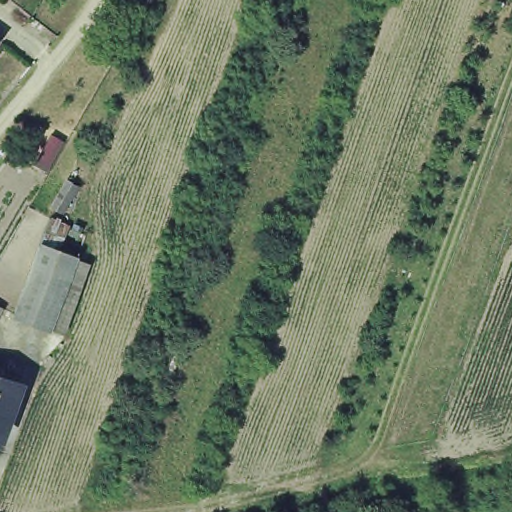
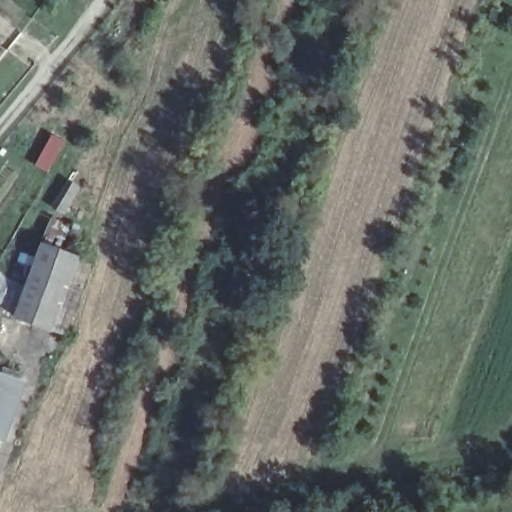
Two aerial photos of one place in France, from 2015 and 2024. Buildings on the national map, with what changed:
unchanged [(50,132),(65,142),(49,170),(34,159),(50,132)]
unchanged [(67,176),(80,185),(63,212),(50,205),(67,176)]
unchanged [(69,282),(32,269),(41,245),(77,258),(69,282)]
unchanged [(15,315),(32,269),(69,282),(52,328),(15,315)]
unchanged [(0,369),(18,375),(15,384),(0,427),(0,370),(0,369)]

